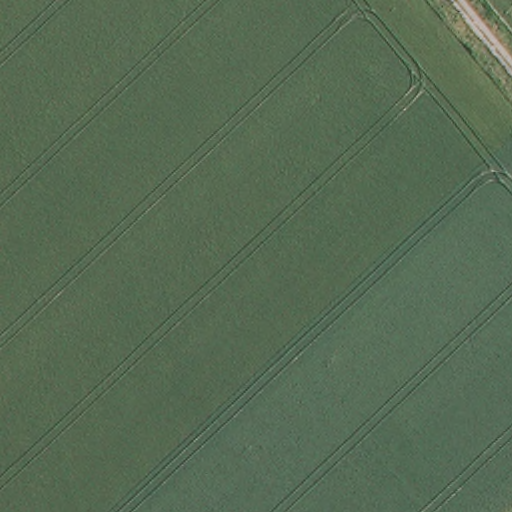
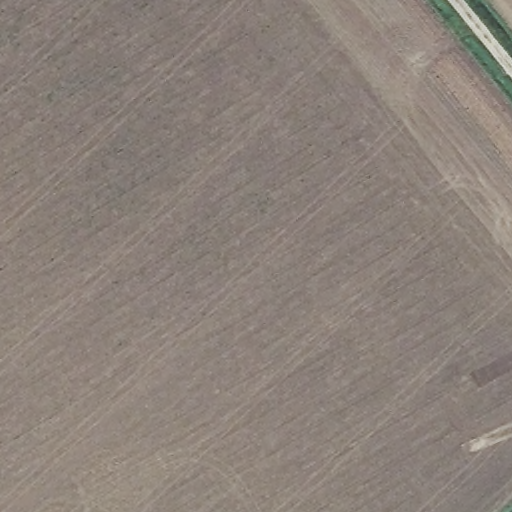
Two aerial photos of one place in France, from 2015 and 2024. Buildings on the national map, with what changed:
[]

